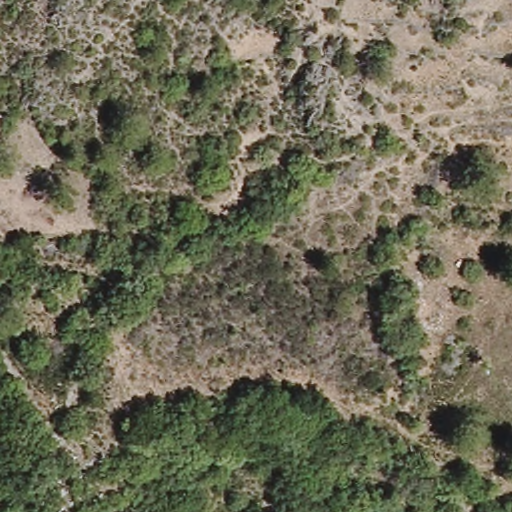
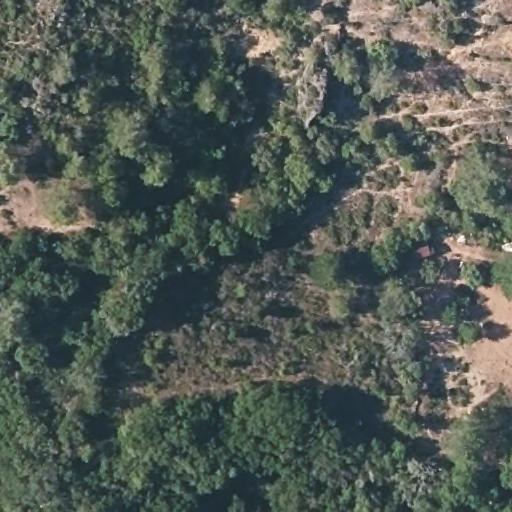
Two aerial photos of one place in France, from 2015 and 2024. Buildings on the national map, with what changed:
unchanged [(319,104),(300,102),(305,68),(328,70),(319,104)]

